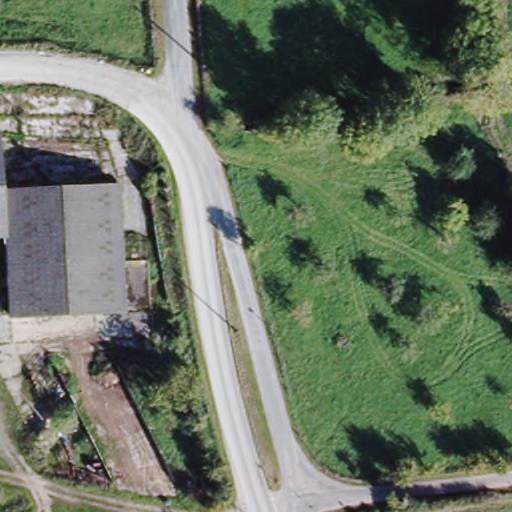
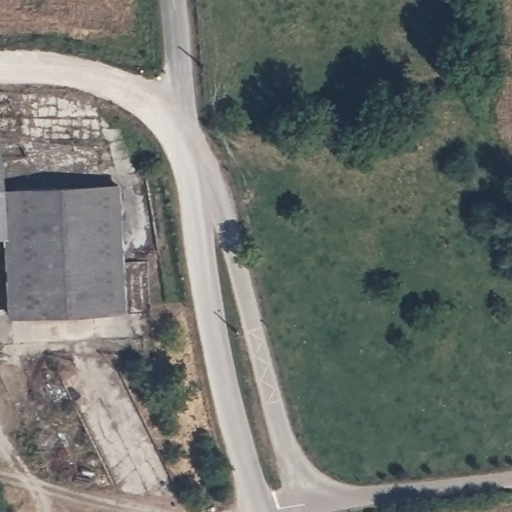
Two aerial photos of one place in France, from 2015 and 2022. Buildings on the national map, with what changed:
unchanged [(1,192),(110,178),(126,305),(15,320),(4,220),(1,192)]
unchanged [(1,192),(4,220),(0,220),(0,188),(1,192)]

